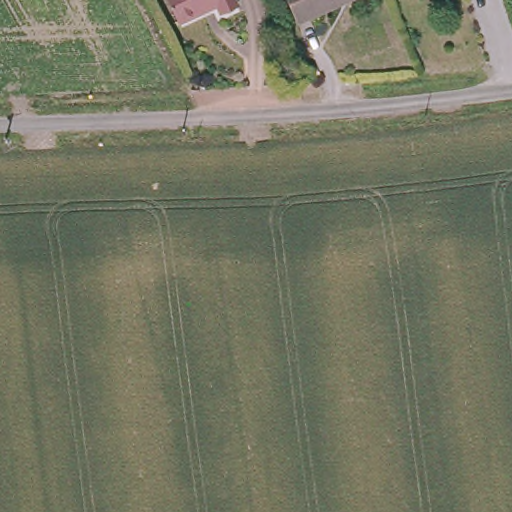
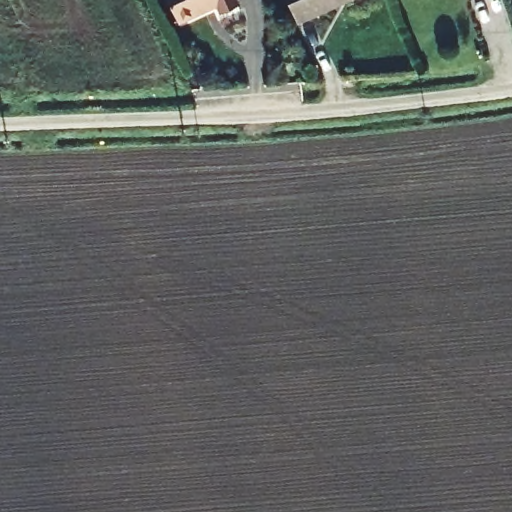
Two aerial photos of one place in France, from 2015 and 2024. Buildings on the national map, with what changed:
unchanged [(242,14),(227,21),(222,12),(184,30),(170,0),(236,0),(242,14)]
unchanged [(373,1),(297,29),(287,0),(372,0),(373,1)]

